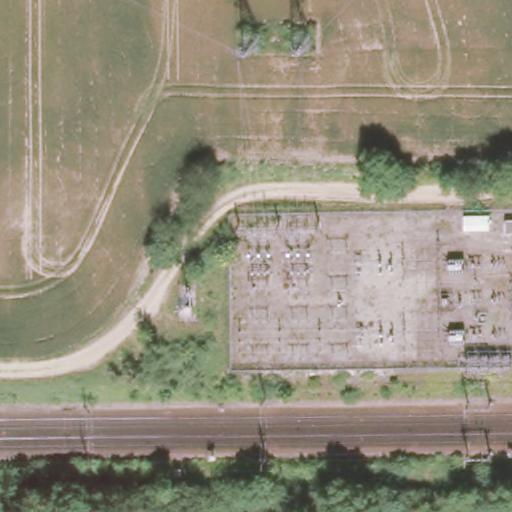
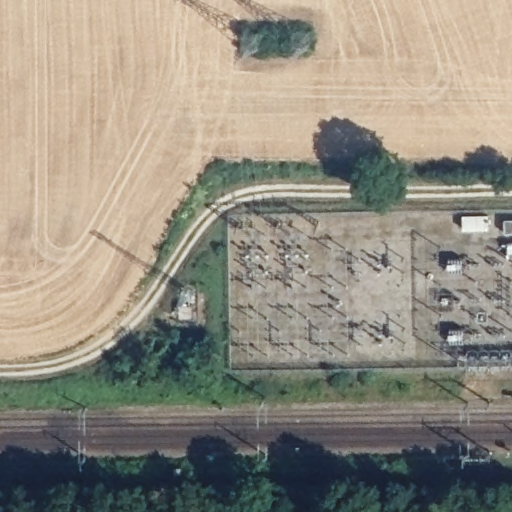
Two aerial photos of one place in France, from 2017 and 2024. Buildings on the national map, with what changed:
unchanged [(501,215),(512,215),(512,233),(501,233),(501,215)]

